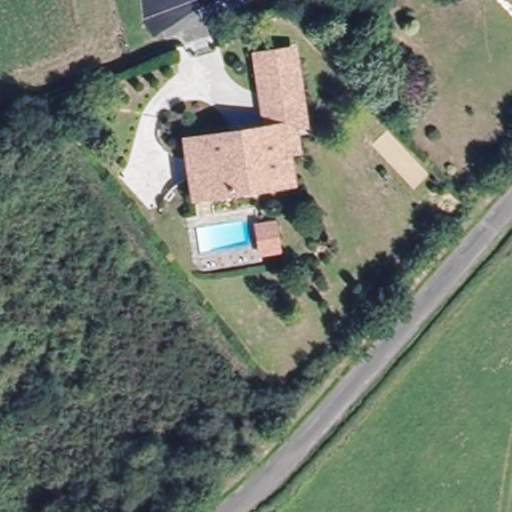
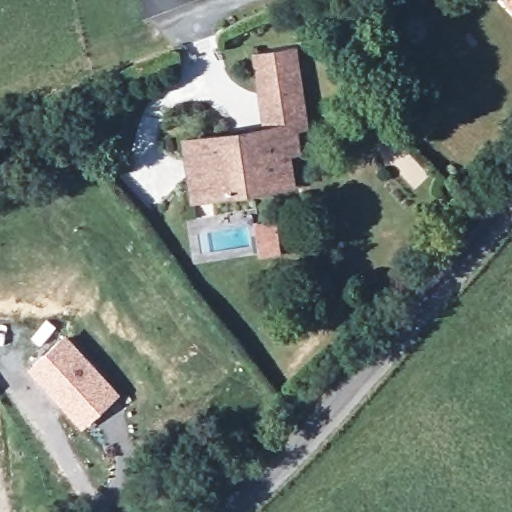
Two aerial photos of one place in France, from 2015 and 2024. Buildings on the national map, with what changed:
unchanged [(508,0),(512,0),(512,4),(508,0)]
unchanged [(299,125),(290,125),(292,150),(283,151),(285,180),(190,194),(183,139),(237,131),(261,129),(252,53),(260,52),(290,48),(299,125)]
unchanged [(273,229),(276,255),(261,257),(257,230),(273,229)]
new [(67,332),(120,392),(81,425),(30,366),(67,332)]

